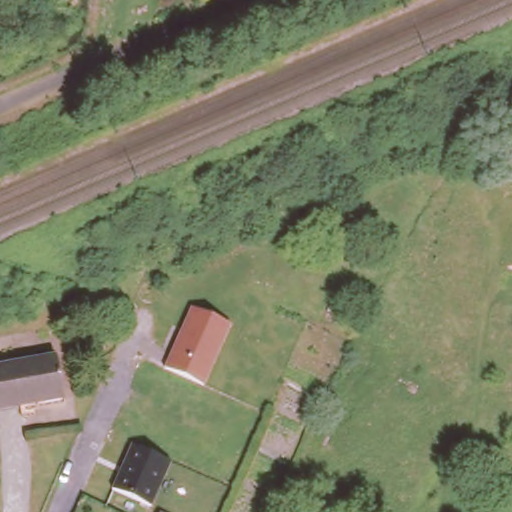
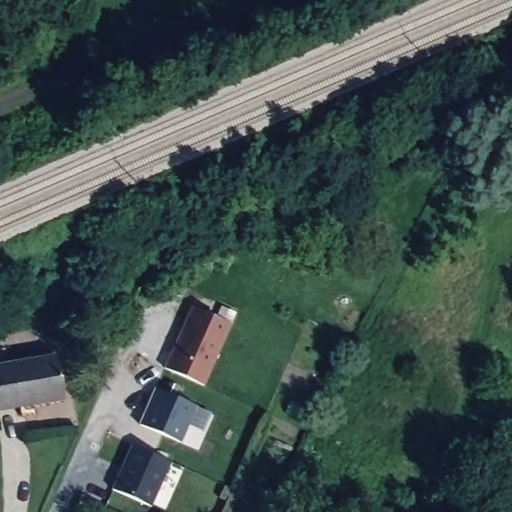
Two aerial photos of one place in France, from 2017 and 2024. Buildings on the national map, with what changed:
unchanged [(165,367),(190,306),(232,324),(205,386),(165,367)]
unchanged [(62,397),(0,408),(0,364),(55,355),(62,397)]
new [(154,388),(205,410),(197,428),(190,425),(182,443),(139,424),(154,388)]
unchanged [(152,507),(150,506),(112,488),(130,447),(169,461),(152,507)]
unchanged [(150,506),(162,512),(147,512),(150,506)]

